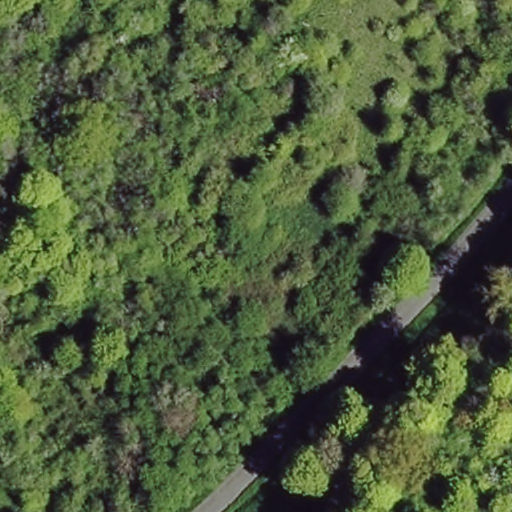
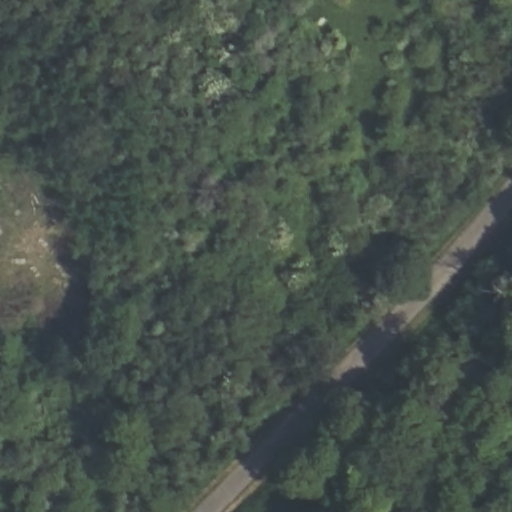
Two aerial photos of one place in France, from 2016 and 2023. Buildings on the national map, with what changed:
unchanged [(245,72),(203,116),(183,97),(225,53),(245,72)]

